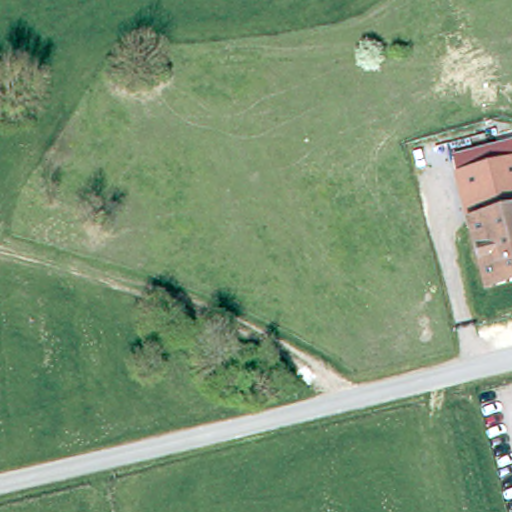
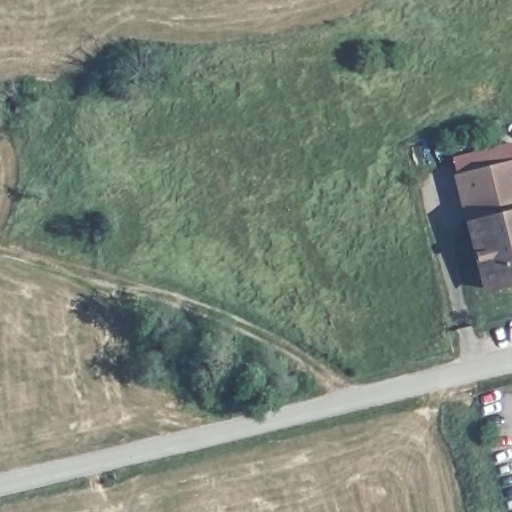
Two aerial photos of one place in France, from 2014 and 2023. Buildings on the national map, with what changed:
unchanged [(465,219),(452,159),(512,142),(512,208),(471,218),(465,219)]
unchanged [(487,282),(471,218),(512,208),(512,275),(487,282)]

